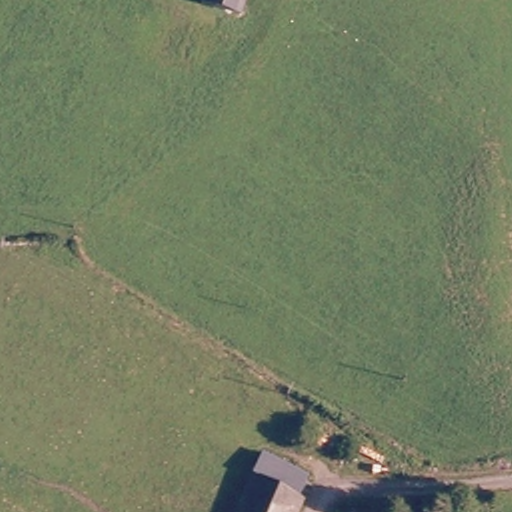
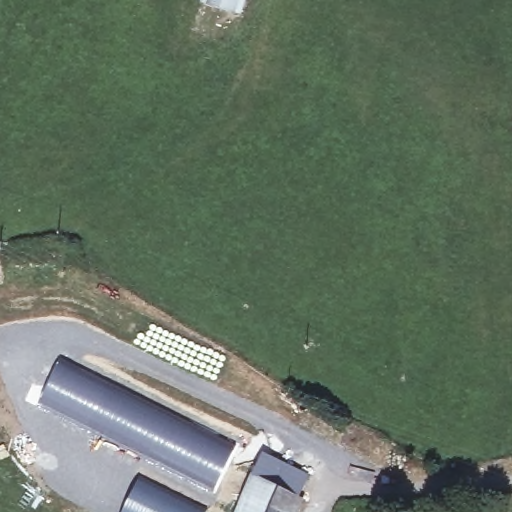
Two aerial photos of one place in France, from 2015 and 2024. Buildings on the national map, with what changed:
unchanged [(242,4),(226,0),(244,0),(242,4)]
new [(59,354),(172,406),(239,442),(214,493),(121,446),(36,401),(59,354)]
unchanged [(262,447),(303,467),(296,485),(253,470),(262,447)]
unchanged [(303,491),(294,512),(235,512),(253,470),(296,485),(303,491)]
new [(208,507),(206,512),(120,512),(139,473),(208,507)]

